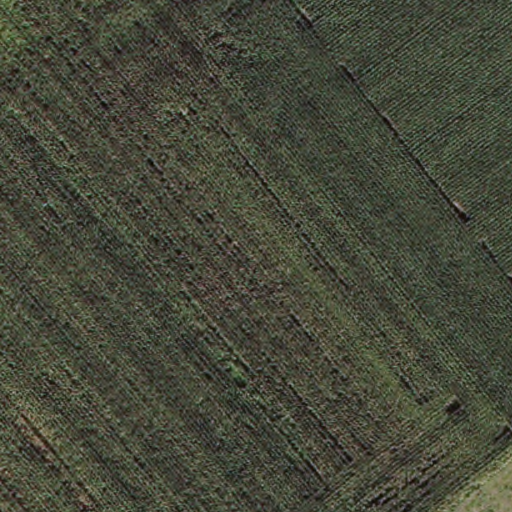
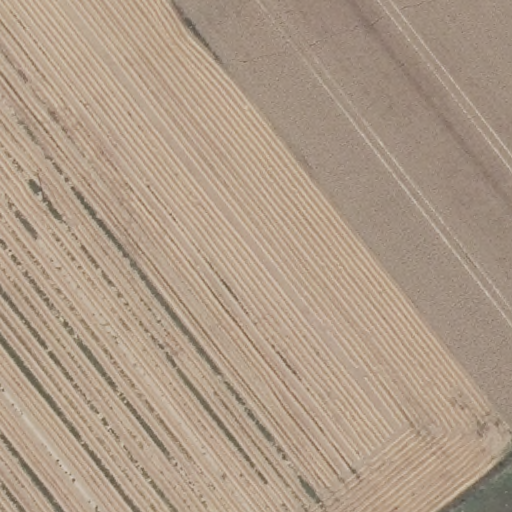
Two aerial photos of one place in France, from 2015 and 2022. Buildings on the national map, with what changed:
[]

